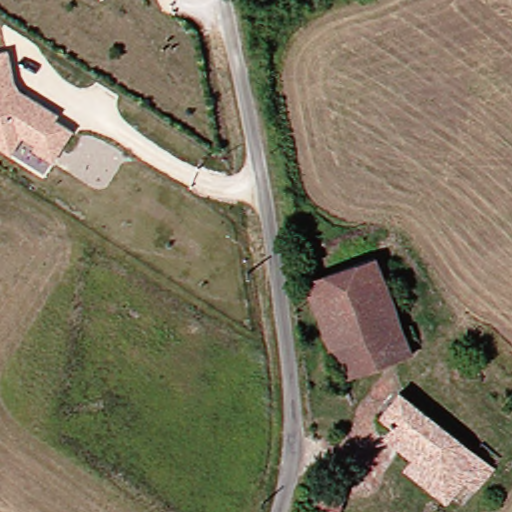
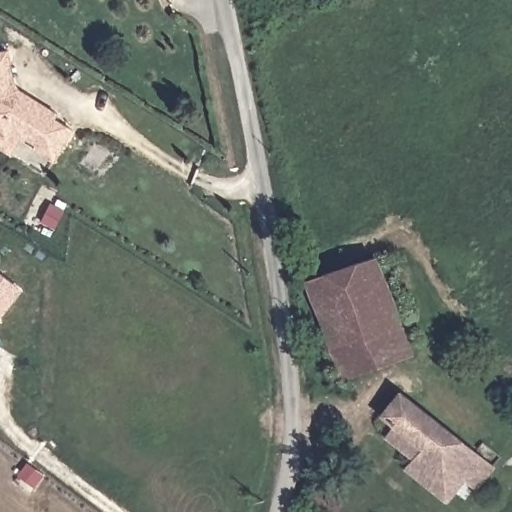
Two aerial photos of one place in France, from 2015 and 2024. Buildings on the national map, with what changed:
unchanged [(13,84),(15,91),(19,93),(56,117),(54,122),(71,133),(52,164),(33,152),(35,148),(21,139),(19,143),(10,157),(0,151),(0,55),(5,54),(13,84)]
unchanged [(297,281),(366,258),(368,262),(378,258),(381,265),(370,269),(395,329),(326,354),(297,281)]
new [(0,323),(0,273),(25,292),(0,323)]
unchanged [(326,354),(395,329),(405,352),(336,380),(326,354)]
unchanged [(440,510),(397,476),(407,464),(380,441),(388,430),(375,418),(397,394),(493,471),(476,493),(463,509),(450,497),(440,510)]
unchanged [(319,475),(341,482),(331,510),(307,501),(316,474),(319,475)]

